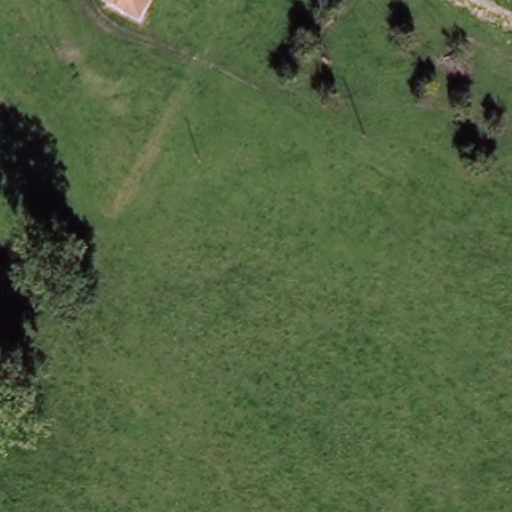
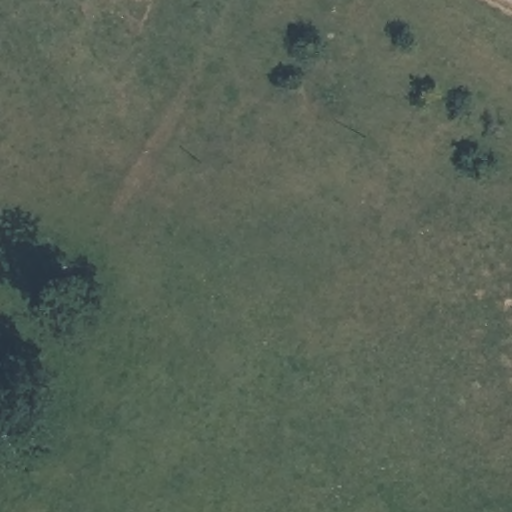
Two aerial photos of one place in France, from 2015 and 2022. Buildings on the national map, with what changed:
demolished [(115,0),(159,0),(144,29),(109,10),(115,0)]

